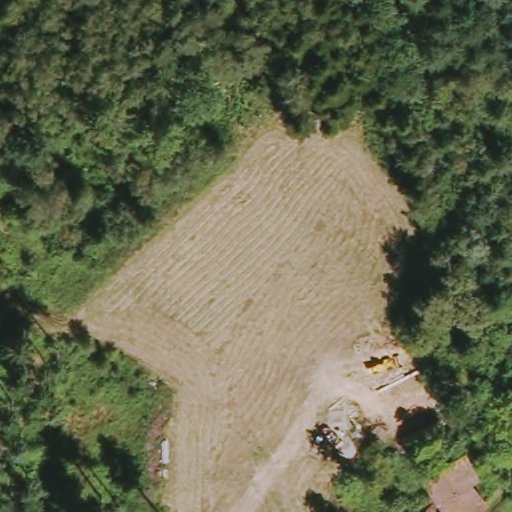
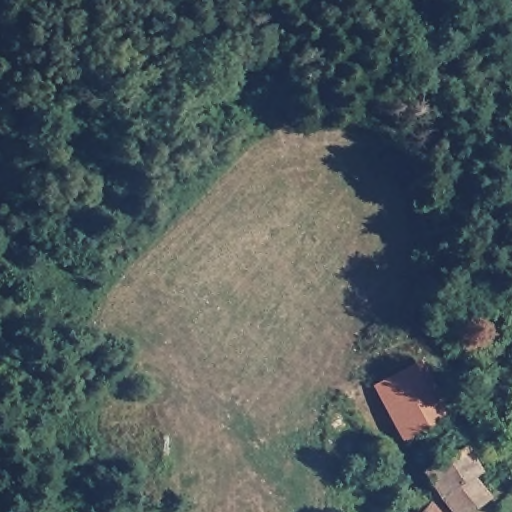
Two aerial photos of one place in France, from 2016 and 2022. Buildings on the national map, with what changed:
new [(449,418),(403,441),(373,385),(421,361),(449,418)]
unchanged [(462,512),(461,512),(445,489),(430,465),(467,444),(481,469),(477,471),(489,494),(462,512)]
unchanged [(438,499),(453,512),(426,512),(438,499)]

